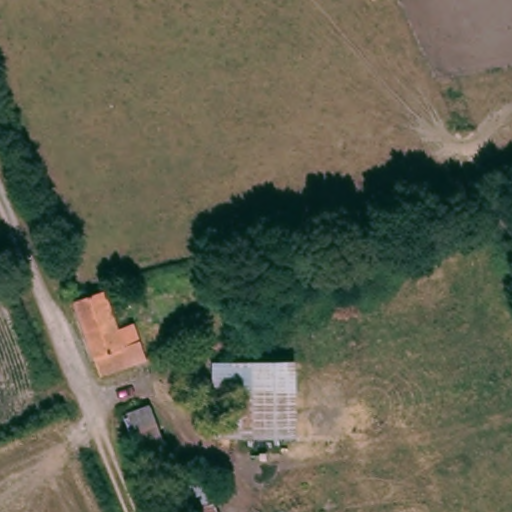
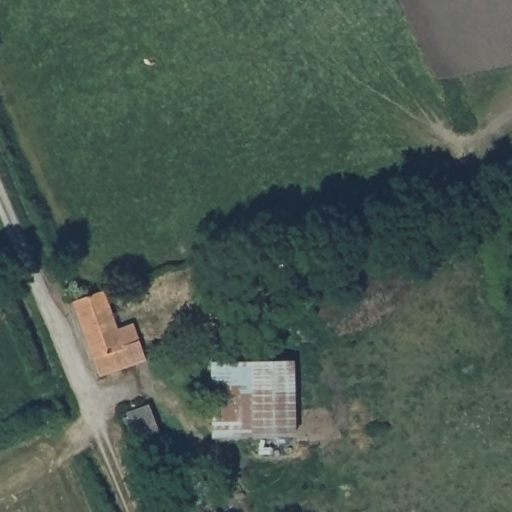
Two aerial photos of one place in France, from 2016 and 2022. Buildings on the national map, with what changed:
unchanged [(103,377),(94,356),(73,302),(108,288),(121,329),(138,322),(142,340),(149,361),(103,377)]
unchanged [(295,357),(299,438),(212,444),(210,362),(295,357)]
unchanged [(156,470),(152,450),(137,453),(124,414),(153,404),(174,466),(156,470)]
unchanged [(210,479),(220,512),(186,512),(179,490),(210,479)]

